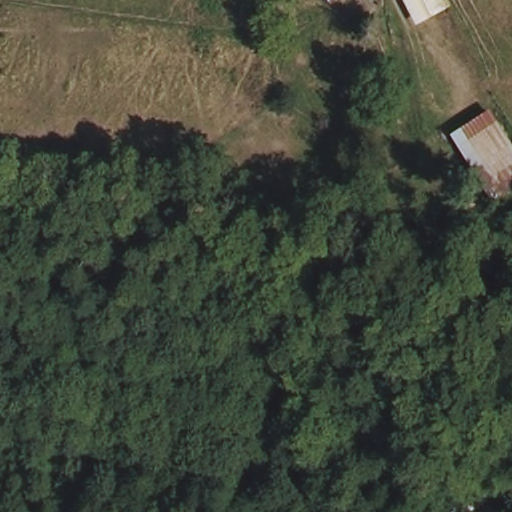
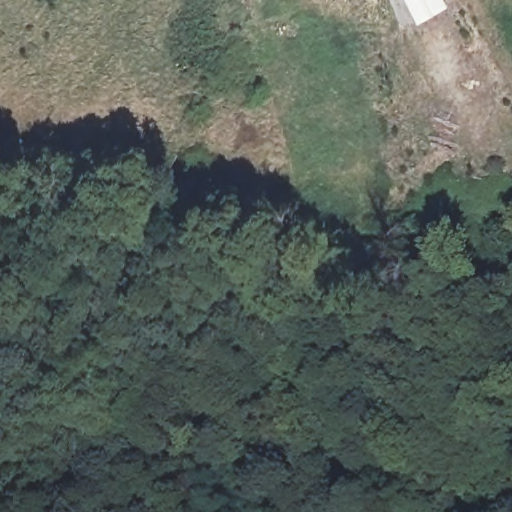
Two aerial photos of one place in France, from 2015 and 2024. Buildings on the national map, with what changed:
unchanged [(373,0),(375,0),(374,1),(373,0)]
new [(415,25),(403,0),(448,0),(451,5),(415,25)]
demolished [(480,166),(463,129),(494,115),(512,159),(512,184),(485,197),(471,170),(480,166)]

